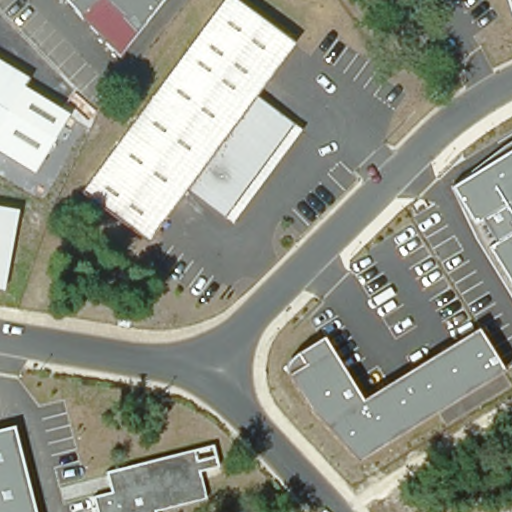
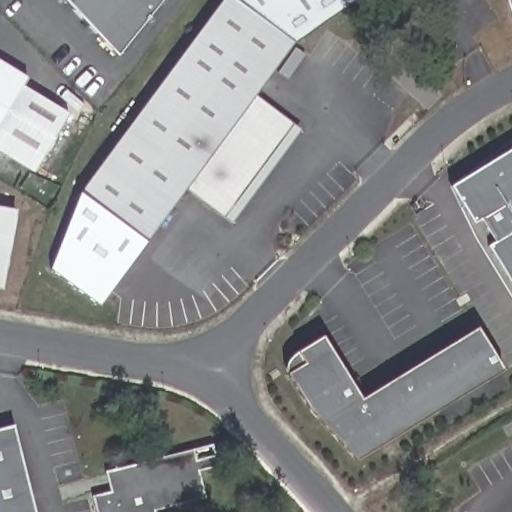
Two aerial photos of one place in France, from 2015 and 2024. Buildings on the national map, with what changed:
unchanged [(119,58),(63,0),(163,0),(119,58)]
unchanged [(256,94),(302,129),(232,224),(184,188),(147,239),(80,190),(223,0),(237,0),(295,42),(256,94)]
new [(295,42),(237,0),(351,0),(295,42)]
unchanged [(507,0),(512,0),(512,14),(507,0)]
unchanged [(0,67),(29,84),(0,132),(0,67)]
unchanged [(68,115),(34,172),(0,152),(0,132),(26,89),(68,115)]
unchanged [(476,239),(450,188),(512,144),(512,298),(476,239)]
new [(80,190),(147,239),(99,303),(49,268),(80,190)]
unchanged [(0,290),(0,213),(14,216),(0,290)]
unchanged [(358,461),(313,416),(284,375),(291,359),(323,339),(362,400),(478,329),(503,371),(358,461)]
unchanged [(34,512),(0,512),(0,431),(13,428),(34,512)]
unchanged [(200,472),(206,499),(155,512),(97,512),(94,498),(112,494),(107,472),(214,446),(219,467),(200,472)]

